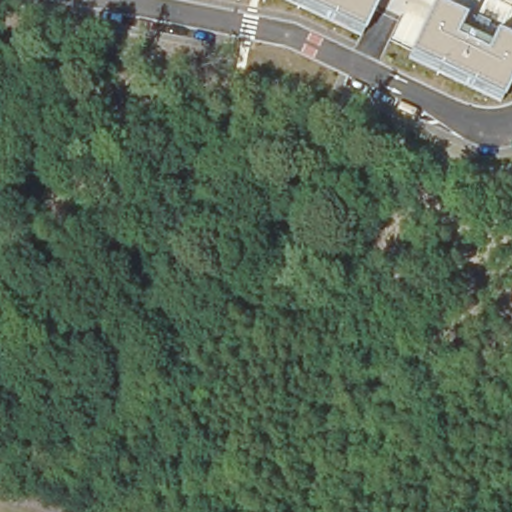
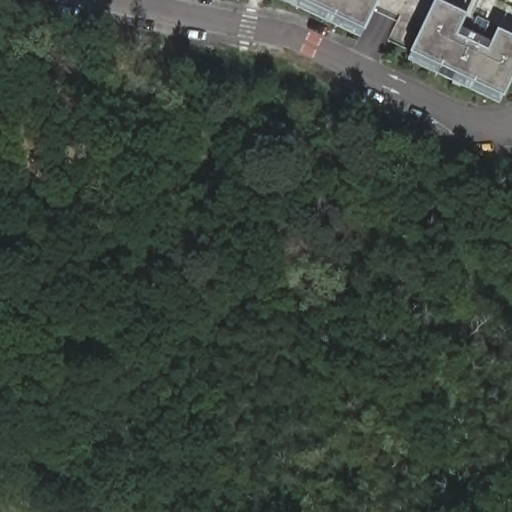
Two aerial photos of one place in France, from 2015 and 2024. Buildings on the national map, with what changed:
unchanged [(365,28),(303,0),(379,0),(365,28)]
unchanged [(504,94),(413,50),(438,0),(440,0),(466,13),(461,27),(494,41),(499,28),(512,34),(512,79),(504,94)]

